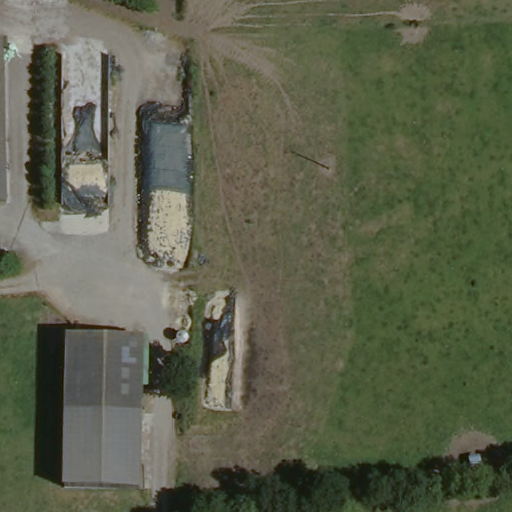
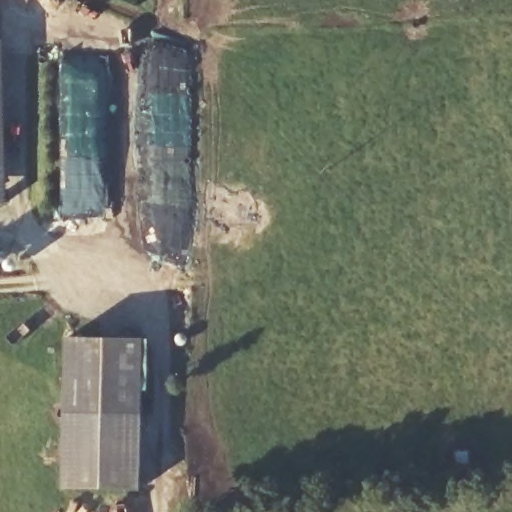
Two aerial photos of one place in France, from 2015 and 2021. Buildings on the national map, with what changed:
unchanged [(4,205),(0,206),(0,45),(5,45),(4,205)]
unchanged [(70,342),(71,342),(141,344),(138,417),(67,414),(70,342)]
unchanged [(138,417),(135,490),(64,485),(67,414),(138,417)]

